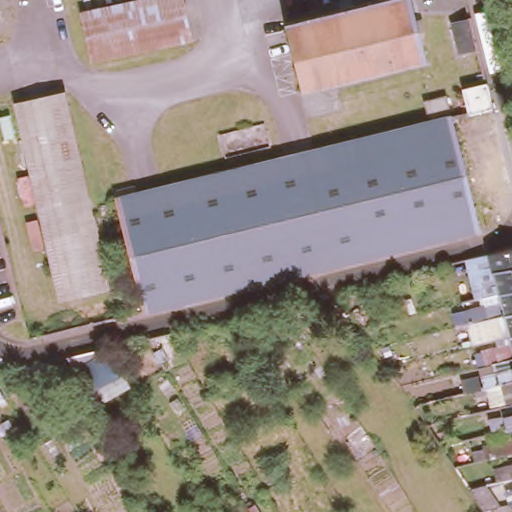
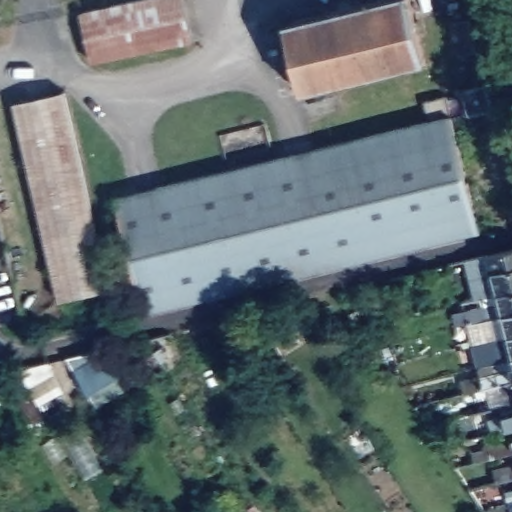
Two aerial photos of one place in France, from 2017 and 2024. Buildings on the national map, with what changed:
unchanged [(94,56),(82,4),(102,0),(182,0),(190,33),(94,56)]
unchanged [(424,56),(302,86),(285,17),(357,0),(410,0),(424,56)]
unchanged [(453,22),(470,18),(478,48),(460,52),(453,22)]
unchanged [(462,80),(485,74),(492,99),(469,105),(462,80)]
unchanged [(60,294),(14,97),(65,85),(110,282),(60,294)]
unchanged [(450,108),(479,221),(143,306),(115,192),(450,108)]
unchanged [(491,431),(488,419),(502,415),(500,405),(490,408),(485,386),(468,390),(465,378),(480,375),(477,365),(474,352),(482,350),(482,349),(510,342),(510,341),(509,334),(495,338),(472,344),(465,345),(464,340),(470,338),(467,321),(465,315),(464,310),(470,308),(470,306),(485,303),(482,295),(475,296),(470,275),(466,258),(495,251),(512,247),(512,432),(510,426),(491,431)]
unchanged [(130,382),(97,400),(69,352),(107,343),(130,382)]
unchanged [(484,445),(512,438),(512,452),(487,457),(484,445)]
unchanged [(494,467),(512,463),(512,476),(496,480),(494,467)]
unchanged [(469,487),(481,484),(495,507),(494,508),(497,512),(485,512),(484,510),(478,501),(469,487)]
unchanged [(505,487),(512,486),(512,503),(509,504),(505,487)]

